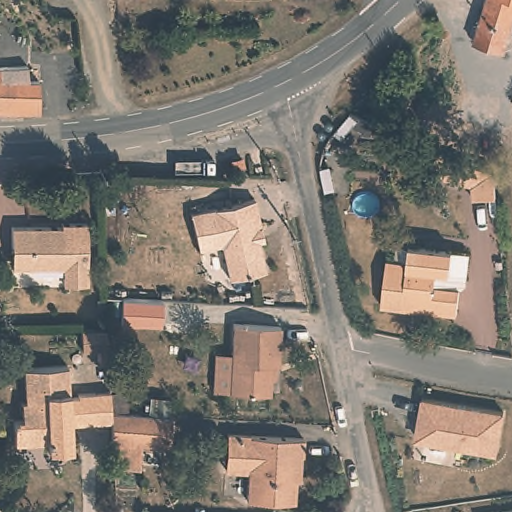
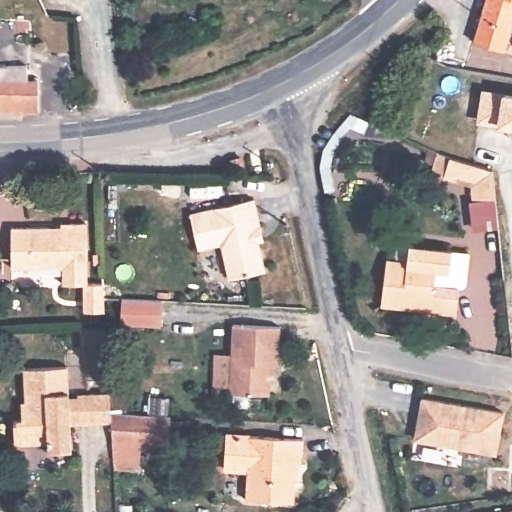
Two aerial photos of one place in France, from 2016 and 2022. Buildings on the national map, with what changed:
unchanged [(485,0),(512,0),(512,24),(504,50),(473,40),(485,0)]
unchanged [(0,61),(26,61),(26,77),(39,78),(38,107),(0,107),(0,61)]
new [(482,89),(503,91),(512,93),(512,129),(497,126),(477,124),(482,89)]
unchanged [(472,202),(469,185),(441,178),(446,159),(492,170),(496,199),(472,202)]
unchanged [(231,277),(222,244),(201,247),(191,210),(254,195),(262,223),(265,237),(257,240),(264,268),(231,277)]
unchanged [(58,281),(56,266),(10,265),(9,226),(59,226),(59,222),(84,222),(84,282),(58,281)]
unchanged [(429,310),(429,305),(414,303),(413,309),(381,305),(386,256),(407,258),(409,242),(452,247),(469,250),(466,282),(460,283),(457,312),(429,310)]
unchanged [(216,351),(233,352),(234,322),(282,325),(281,362),(274,364),(274,375),(270,375),(269,394),(231,391),(214,390),(216,351)]
unchanged [(108,354),(80,355),(78,332),(105,330),(108,354)]
unchanged [(14,421),(23,421),(23,405),(27,405),(25,368),(68,366),(70,399),(78,399),(79,392),(113,389),(115,407),(114,423),(82,425),(80,425),(71,426),(72,450),(49,451),(49,445),(32,444),(14,445),(14,421)]
unchanged [(128,388),(128,400),(148,400),(148,395),(170,397),(168,465),(143,462),(142,475),(114,472),(114,423),(115,407),(113,389),(128,388)]
unchanged [(505,410),(498,453),(413,435),(421,395),(505,410)]
unchanged [(250,495),(250,471),(225,470),(228,433),(301,437),(300,457),(291,457),(289,497),(250,495)]
unchanged [(497,511),(512,509),(512,512),(497,512),(497,511)]

